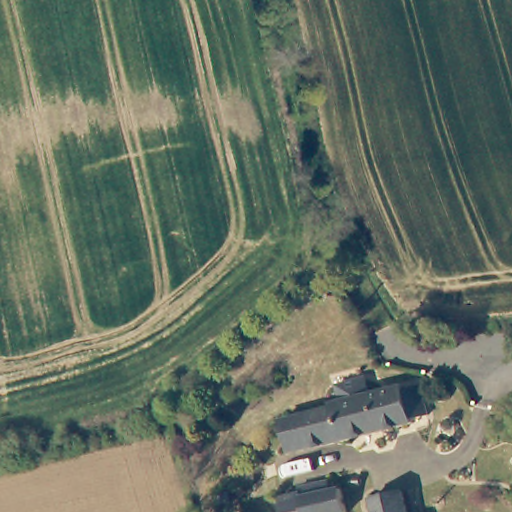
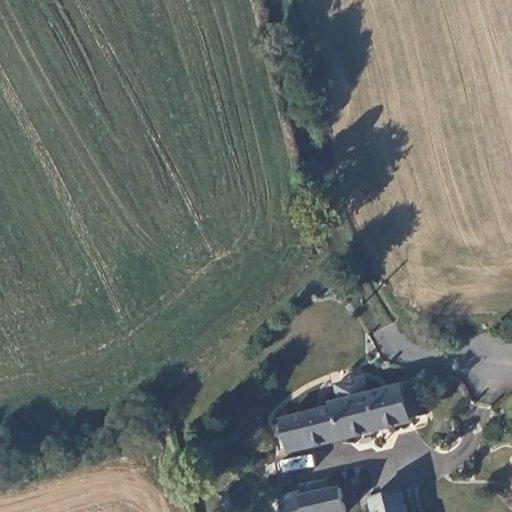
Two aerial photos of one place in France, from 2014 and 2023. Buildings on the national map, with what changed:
unchanged [(333,401),(394,388),(401,386),(408,382),(409,386),(422,384),(429,415),(414,419),(415,424),(292,454),(283,422),(332,411),(330,402),(333,401)]
unchanged [(283,491),(301,487),(300,483),(331,475),(332,480),(330,480),(332,485),(346,483),(352,510),(343,512),(288,512),(283,491)]
unchanged [(407,489),(412,512),(380,512),(376,495),(407,489)]

